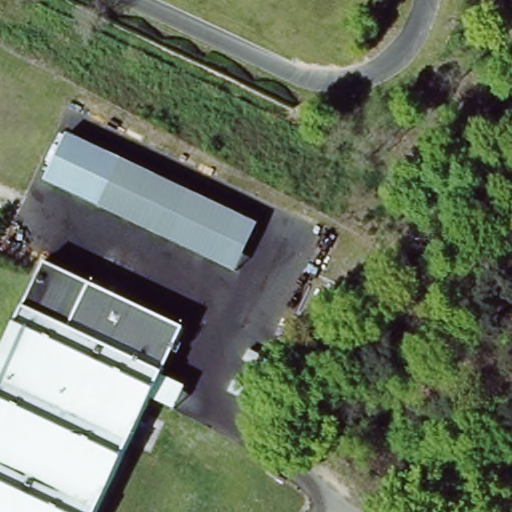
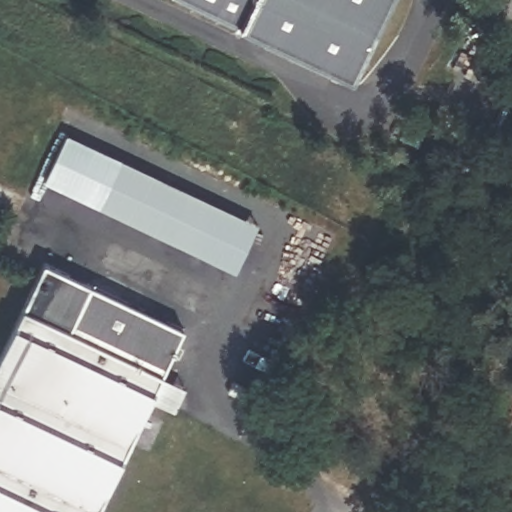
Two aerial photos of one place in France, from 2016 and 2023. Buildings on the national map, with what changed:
new [(244,29),(183,0),(394,0),(354,84),(244,29)]
unchanged [(107,210),(43,181),(66,135),(127,167),(107,210)]
unchanged [(107,210),(127,167),(260,232),(238,275),(107,210)]
unchanged [(0,371),(50,267),(186,333),(99,512),(0,512),(0,371)]

